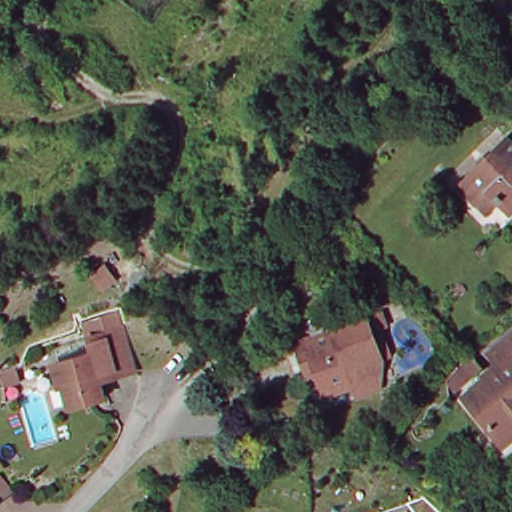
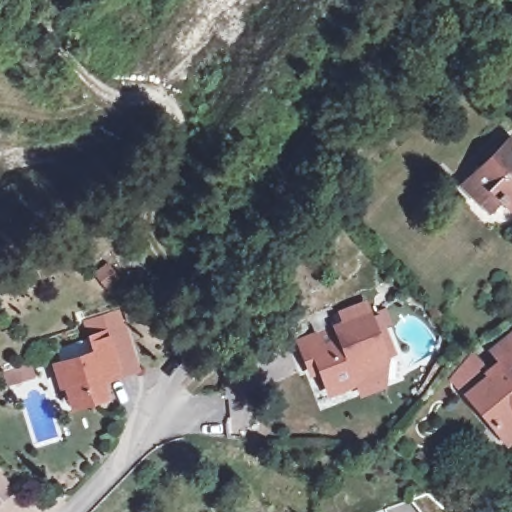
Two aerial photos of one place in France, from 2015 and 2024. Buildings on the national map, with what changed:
unchanged [(477,198),(462,183),(505,138),(512,144),(512,209),(510,211),(500,200),(487,215),(474,201),(477,198)]
unchanged [(330,391),(317,356),(307,360),(300,340),(345,323),(341,311),(364,303),(369,315),(386,307),(392,326),(385,330),(395,356),(386,360),(384,382),(379,385),(360,391),(356,382),(330,391)]
unchanged [(107,393),(72,403),(60,363),(94,353),(90,337),(107,331),(125,326),(137,370),(121,375),(104,380),(107,393)]
unchanged [(468,396),(506,365),(497,352),(512,341),(512,438),(507,442),(468,396)]
unchanged [(484,364),(472,372),(465,363),(477,355),(484,364)]
unchanged [(15,377),(2,382),(0,373),(0,371),(13,368),(15,377)]
unchanged [(17,483),(0,496),(0,497),(0,465),(17,483)]

